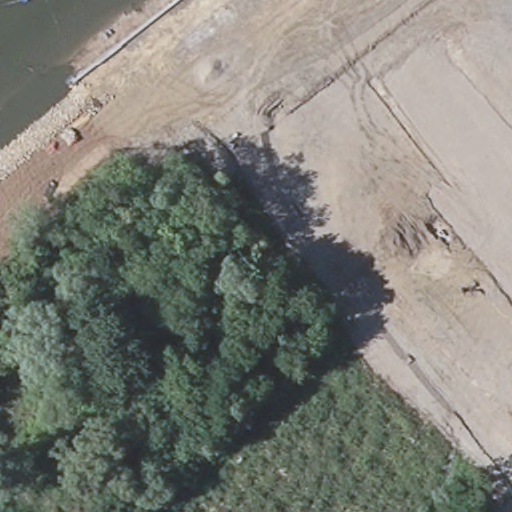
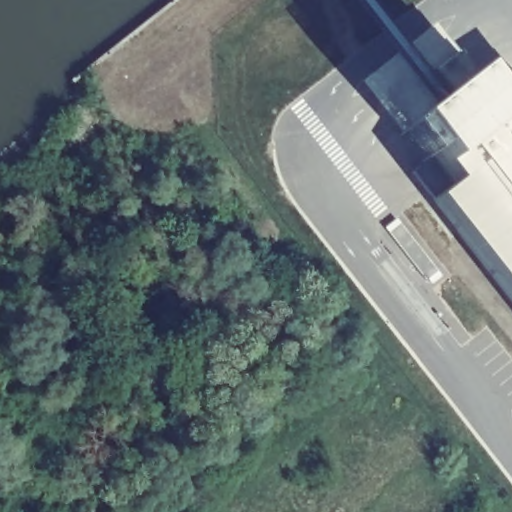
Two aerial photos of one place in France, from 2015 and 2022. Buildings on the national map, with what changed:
new [(453,56),(469,76),(472,77),(487,99),(512,82),(512,300),(434,201),(454,186),(452,162),(442,170),(429,154),(421,162),(401,136),(397,136),(358,86),(433,27),(453,52),(453,56)]

